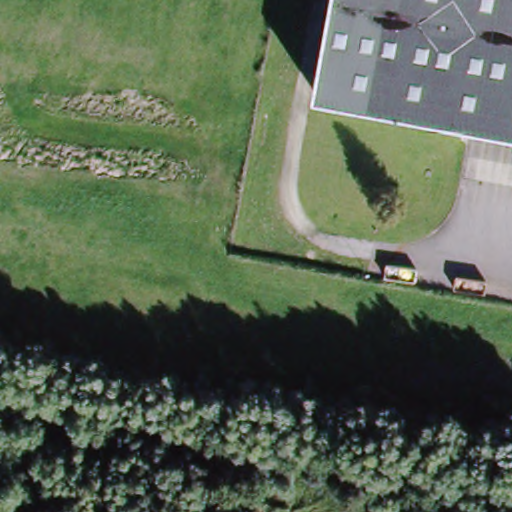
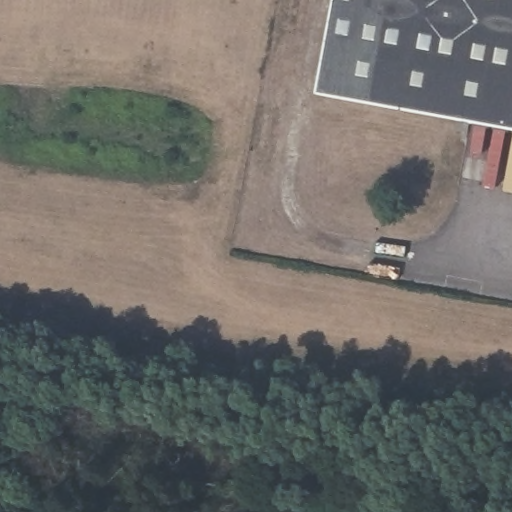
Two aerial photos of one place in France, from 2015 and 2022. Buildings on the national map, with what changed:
unchanged [(332,0),(512,0),(512,130),(315,94),(332,0)]

